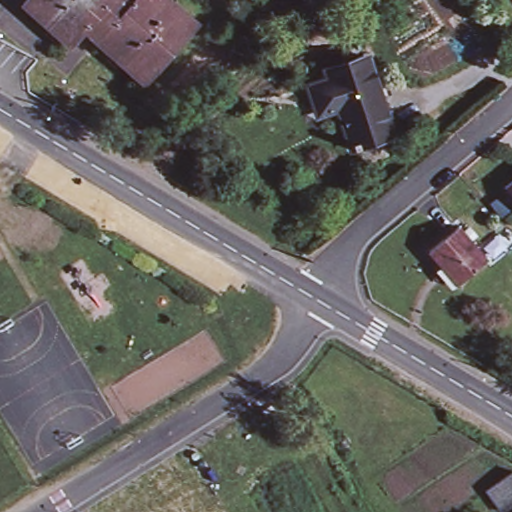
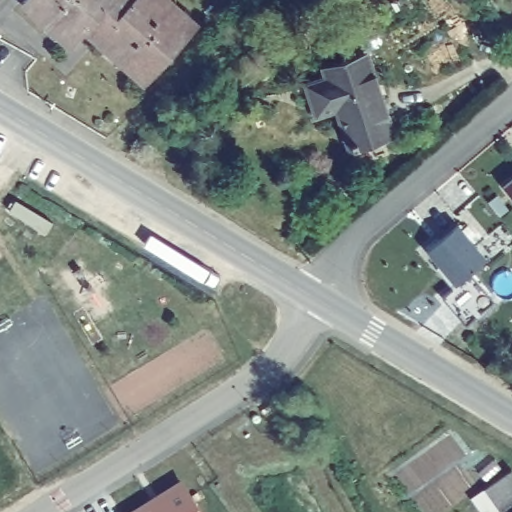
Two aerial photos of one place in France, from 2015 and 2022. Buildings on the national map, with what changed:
unchanged [(173,0),(201,24),(149,83),(100,40),(106,33),(95,24),(75,47),(24,1),(25,0),(173,0)]
unchanged [(335,83),(331,73),(372,59),(398,136),(365,147),(365,150),(354,154),(352,148),(356,147),(344,110),(323,117),(314,89),(335,83)]
unchanged [(512,181),(512,197),(505,187),(512,181)]
unchanged [(470,226),(477,235),(471,240),(487,259),(459,284),(430,250),(458,225),(463,231),(470,226)]
unchanged [(512,501),(496,511),(483,488),(512,472),(512,501)]
new [(151,499),(153,503),(158,500),(156,496),(180,481),(199,512),(132,512),(151,499)]

